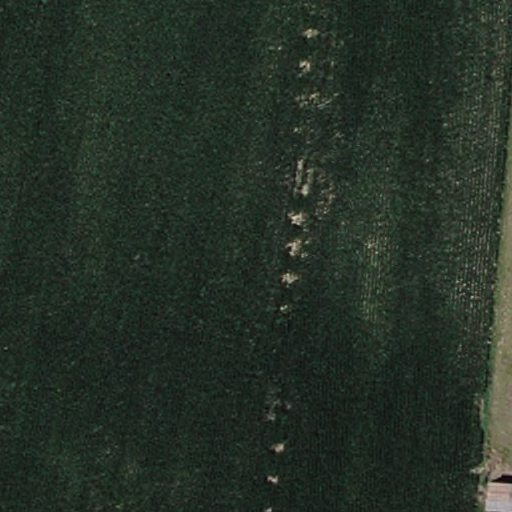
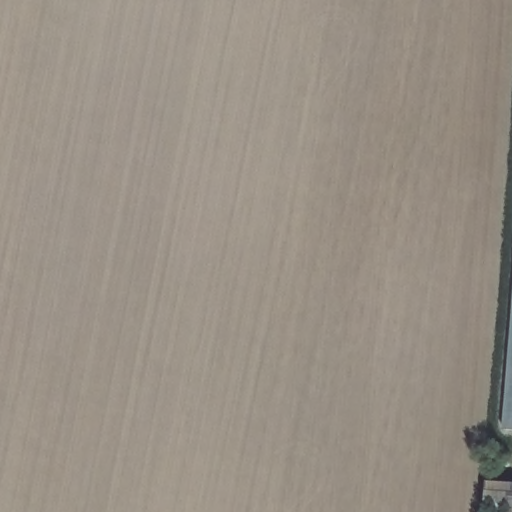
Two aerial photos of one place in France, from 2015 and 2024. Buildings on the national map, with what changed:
new [(502,429),(512,297),(512,430),(502,429)]
unchanged [(496,512),(475,510),(477,482),(512,485),(512,512),(496,512)]

